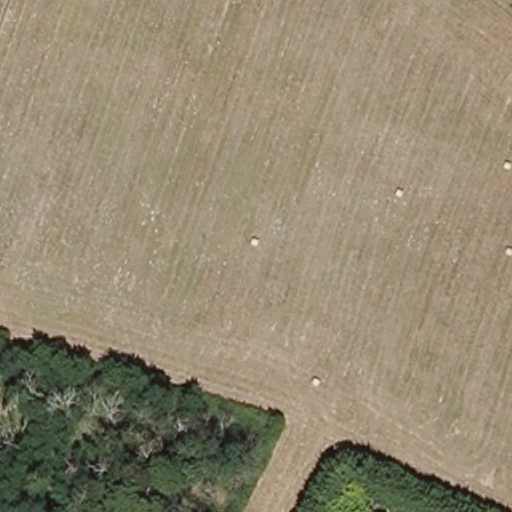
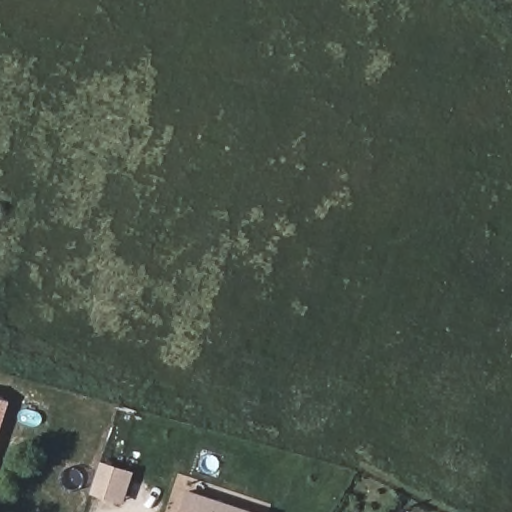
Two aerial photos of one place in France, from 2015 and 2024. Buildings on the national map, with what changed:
new [(0,421),(0,397),(7,399),(0,421)]
new [(101,460),(135,471),(124,504),(90,493),(101,460)]
new [(261,512),(179,512),(187,488),(261,512)]

